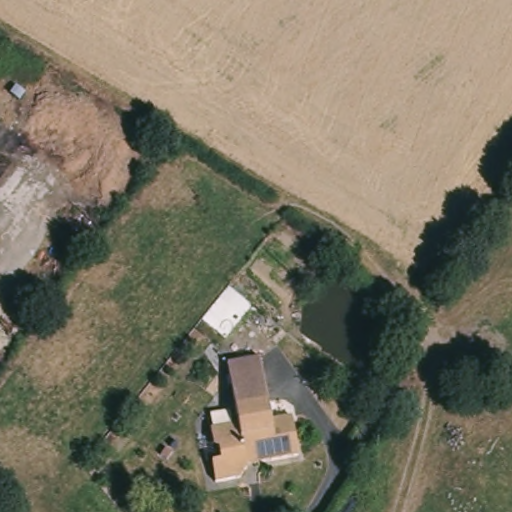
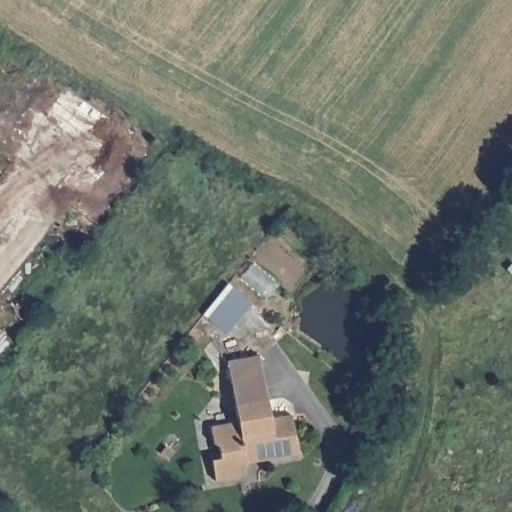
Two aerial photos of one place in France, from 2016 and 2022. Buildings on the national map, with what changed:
unchanged [(242,422),(230,363),(260,356),(273,420),(295,416),(303,453),(245,465),(247,476),(220,482),(215,460),(230,457),(226,441),(218,442),(215,428),(242,422)]

